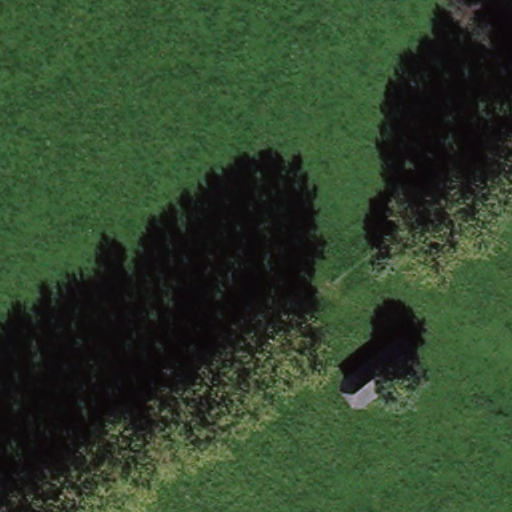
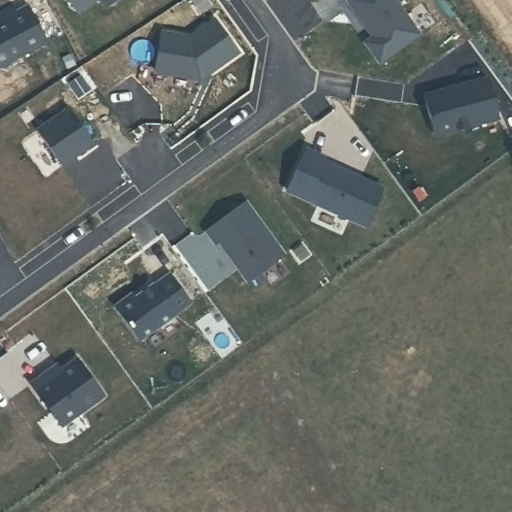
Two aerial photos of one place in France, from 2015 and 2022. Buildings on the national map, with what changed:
new [(68,0),(95,0),(76,12),(68,0)]
new [(100,0),(117,0),(105,8),(100,0)]
new [(372,37),(346,0),(394,0),(418,34),(379,63),(365,43),(372,37)]
new [(0,18),(14,11),(15,13),(28,6),(47,42),(0,66),(0,18)]
new [(434,136),(423,95),(487,78),(498,119),(485,122),(434,136)]
new [(36,131),(68,108),(93,144),(61,166),(36,131)]
new [(286,191),(305,149),(324,158),(322,162),(382,189),(365,226),(286,191)]
new [(284,256),(247,282),(219,243),(216,246),(205,232),(245,203),(284,256)]
new [(138,340),(113,307),(132,294),(135,298),(153,284),(154,285),(170,274),(191,302),(138,340)]
demolished [(413,366),(362,408),(342,385),(394,342),(413,366)]
new [(30,384),(45,373),(55,366),(60,371),(50,379),(76,359),(102,396),(61,426),(30,384)]

